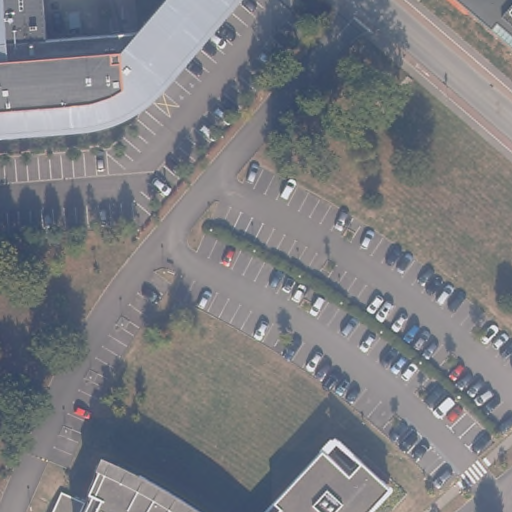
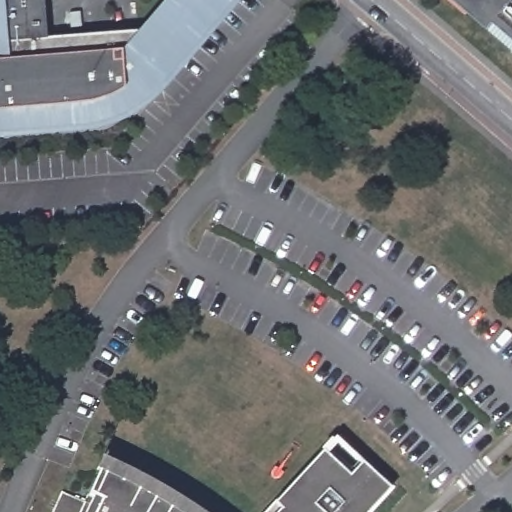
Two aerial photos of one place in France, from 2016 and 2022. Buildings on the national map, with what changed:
unchanged [(36,41),(30,41),(0,40),(0,0),(33,0),(36,41)]
unchanged [(30,41),(36,41),(36,42),(41,42),(129,32),(156,0),(226,0),(152,85),(142,96),(133,104),(127,108),(114,117),(84,126),(51,129),(0,133),(0,40),(30,41)]
unchanged [(512,43),(459,0),(512,0),(512,43)]
unchanged [(347,481),(358,469),(385,494),(369,512),(270,512),(321,457),(347,481)]
unchanged [(84,500),(95,475),(112,482),(134,493),(139,484),(172,502),(187,512),(83,512),(88,502),(84,500)]
unchanged [(79,512),(50,512),(57,497),(81,507),(79,512)]

